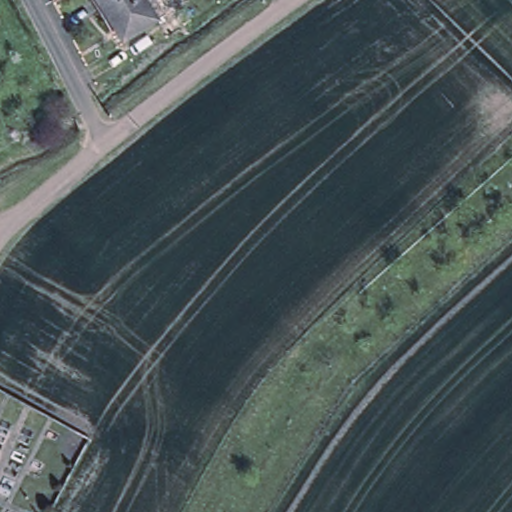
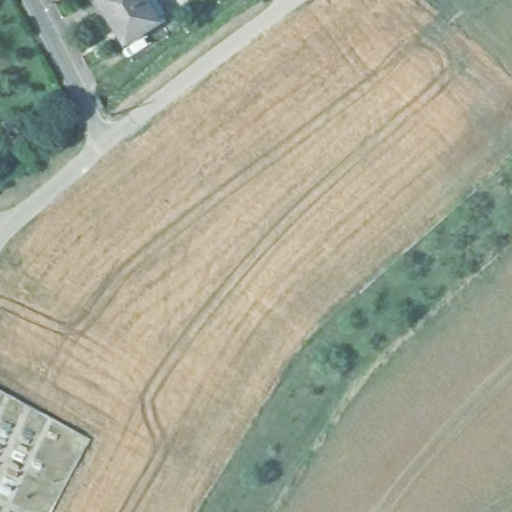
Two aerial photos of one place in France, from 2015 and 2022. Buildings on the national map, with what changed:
unchanged [(89,0),(148,0),(156,14),(147,20),(113,40),(104,25),(89,0)]

